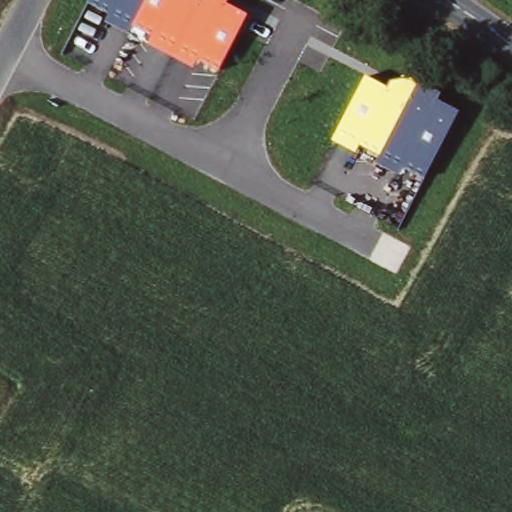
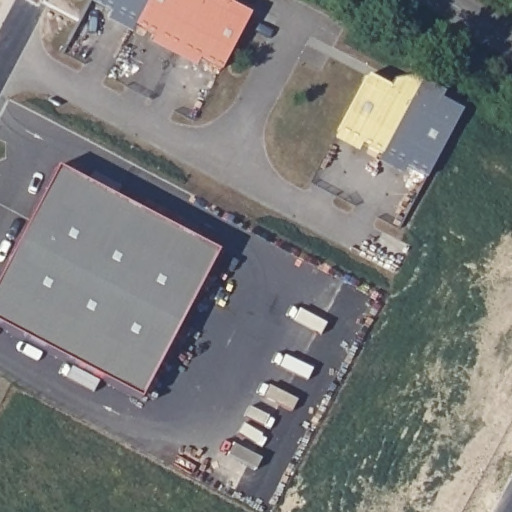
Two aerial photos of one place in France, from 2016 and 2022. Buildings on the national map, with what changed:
unchanged [(88,0),(229,0),(228,3),(250,16),(221,70),(87,3),(88,0)]
unchanged [(334,131),(366,72),(387,82),(404,76),(443,91),(439,100),(459,110),(425,177),(334,131)]
new [(138,401),(0,328),(0,274),(56,168),(217,251),(138,401)]

